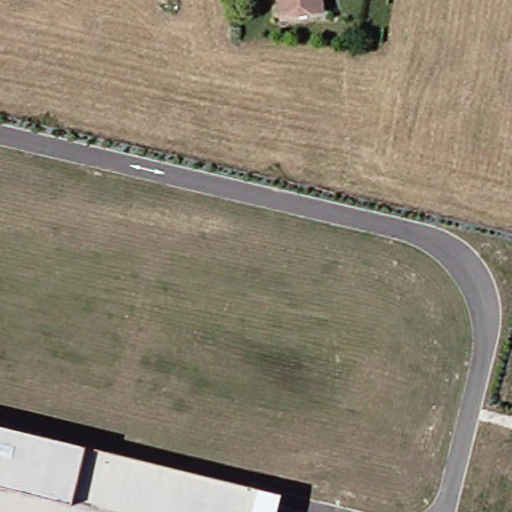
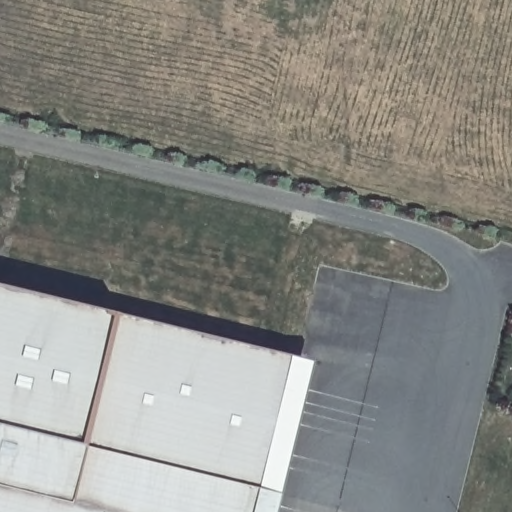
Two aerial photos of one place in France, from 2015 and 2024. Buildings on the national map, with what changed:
demolished [(326,12),(285,17),(284,0),(324,0),(326,12)]
new [(301,349),(262,512),(0,512),(0,276),(301,349)]
new [(318,354),(282,512),(262,512),(301,349),(318,354)]
demolished [(88,448),(285,495),(281,512),(0,512),(0,426),(88,448)]

